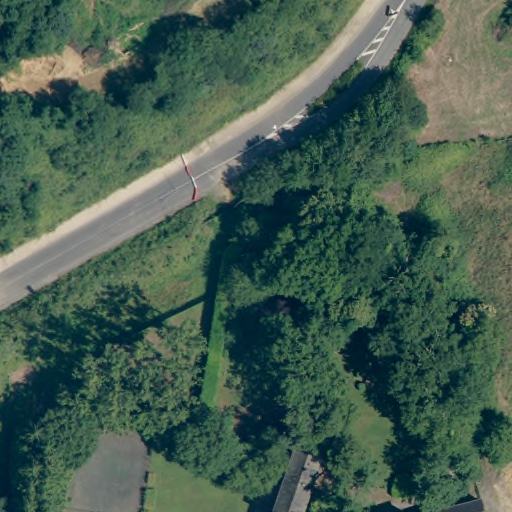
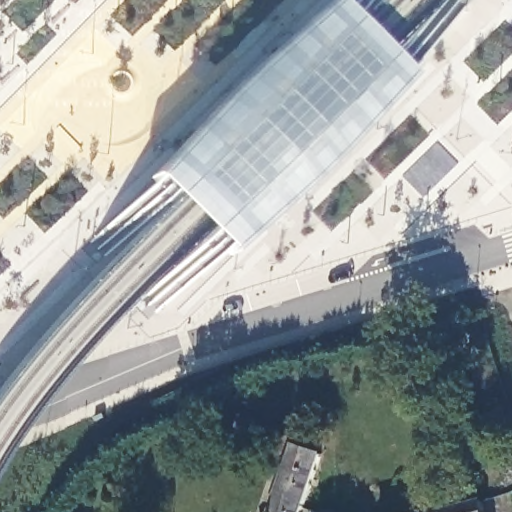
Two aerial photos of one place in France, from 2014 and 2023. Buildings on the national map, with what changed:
new [(225,252),(147,178),(327,0),(405,76),(225,252)]
unchanged [(322,458),(306,512),(280,512),(296,463),(286,459),(289,451),(299,455),(300,451),(322,458)]
demolished [(512,470),(512,497),(510,497),(502,473),(512,470)]
unchanged [(477,498),(478,511),(479,512),(422,512),(477,498)]

